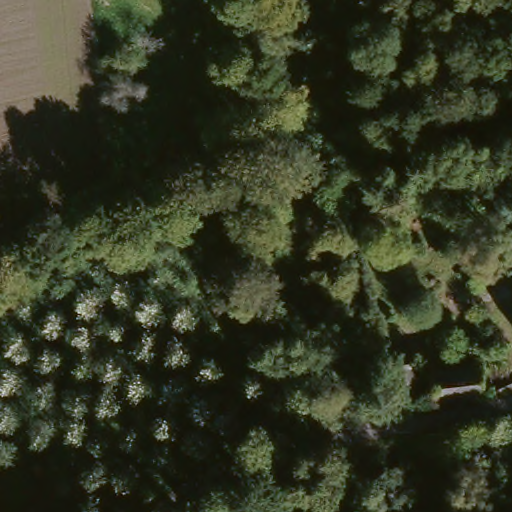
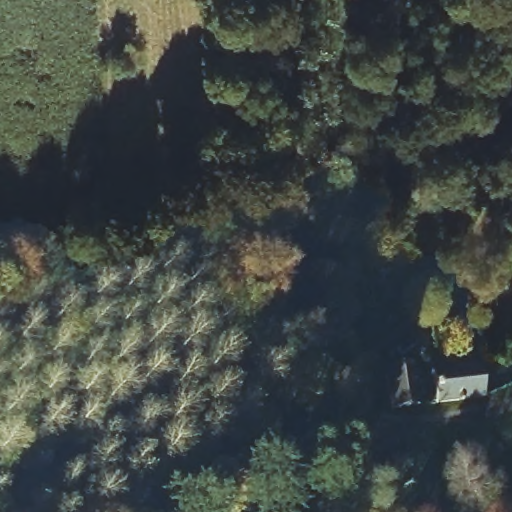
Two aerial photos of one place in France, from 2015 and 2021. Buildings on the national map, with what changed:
unchanged [(431,372),(437,371),(474,364),(478,391),(438,400),(431,372)]
unchanged [(369,379),(367,373),(369,372),(371,372),(403,367),(409,368),(416,405),(382,412),(376,413),(369,379)]

